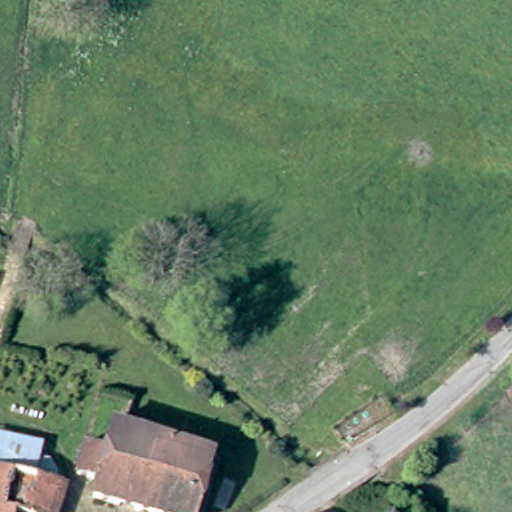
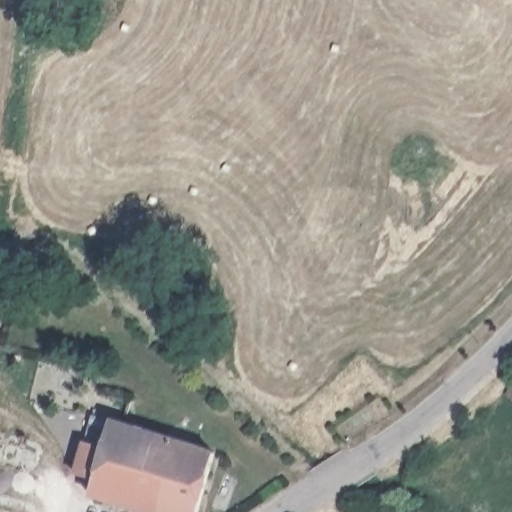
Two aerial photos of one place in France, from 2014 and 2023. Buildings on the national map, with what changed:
unchanged [(512,383),(512,399),(502,391),(512,383)]
unchanged [(88,440),(107,446),(117,419),(125,421),(133,395),(173,408),(165,434),(218,450),(198,512),(162,512),(93,491),(97,477),(78,471),(88,440)]
demolished [(45,452),(62,459),(63,470),(61,478),(0,461),(0,429),(48,438),(45,452)]
demolished [(65,480),(56,512),(0,512),(0,461),(61,478),(65,480)]

